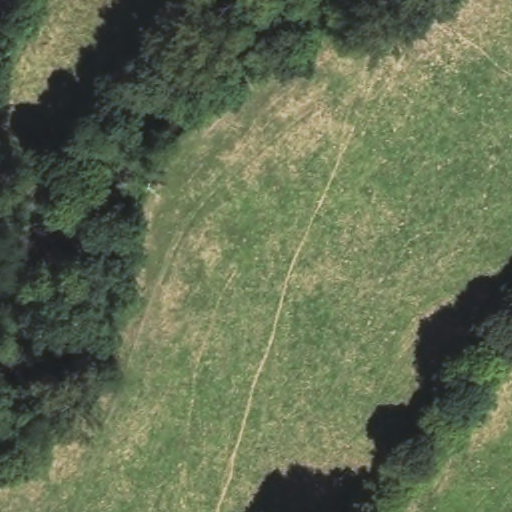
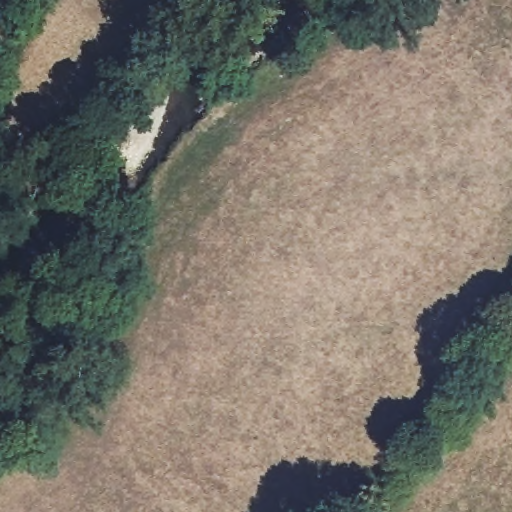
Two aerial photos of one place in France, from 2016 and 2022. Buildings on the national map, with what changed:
[]

